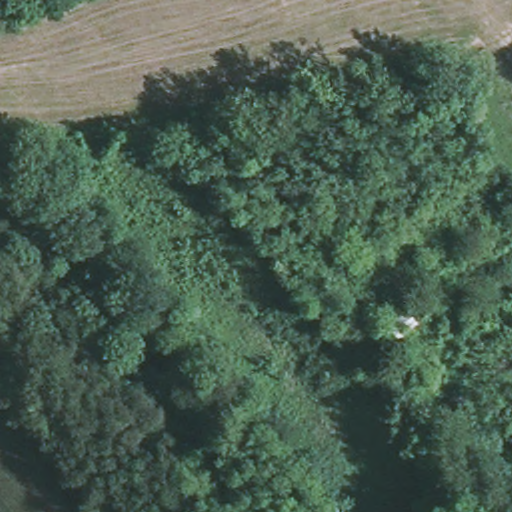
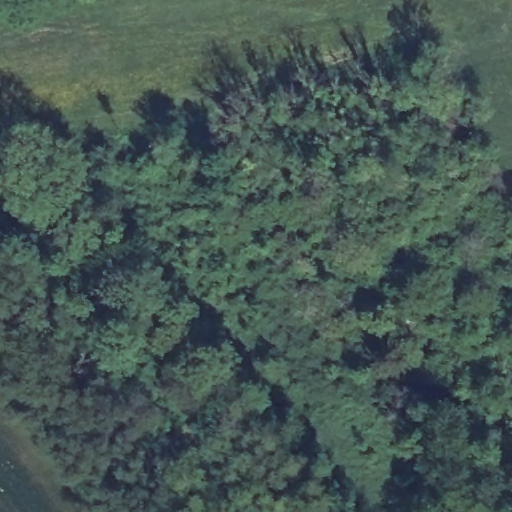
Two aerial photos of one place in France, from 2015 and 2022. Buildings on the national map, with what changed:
unchanged [(400,340),(385,323),(404,305),(422,324),(400,340)]

